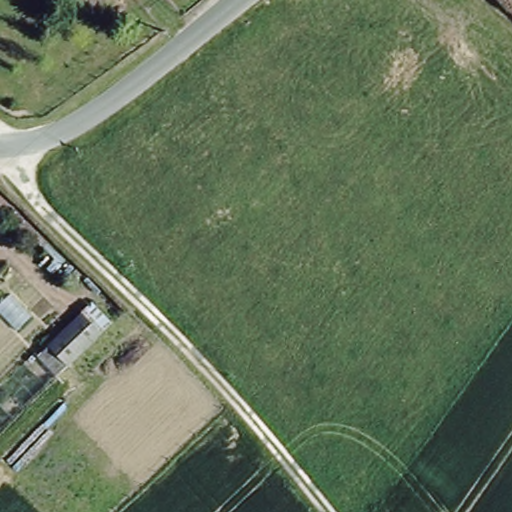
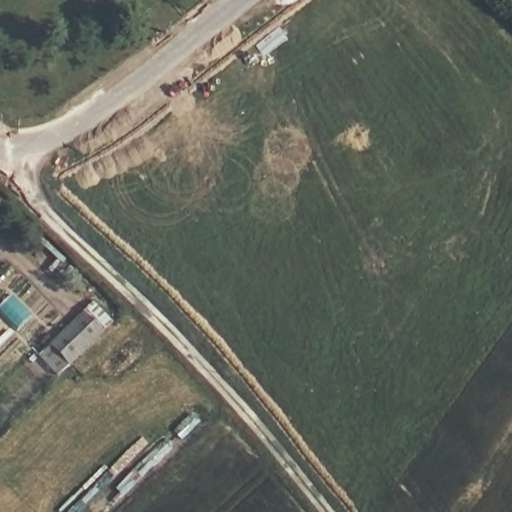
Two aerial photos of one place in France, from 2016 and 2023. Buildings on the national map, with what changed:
unchanged [(97,331),(53,374),(36,356),(79,314),(97,331)]

